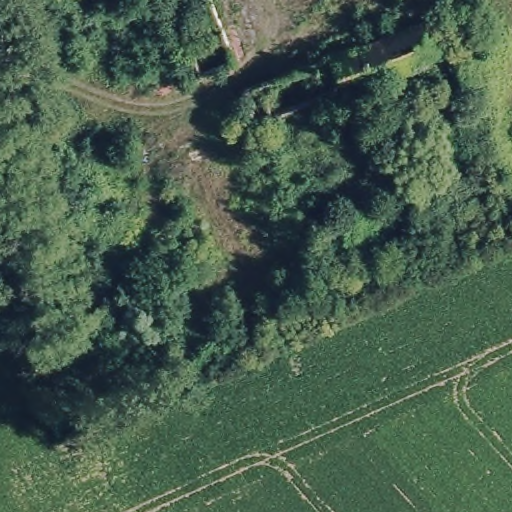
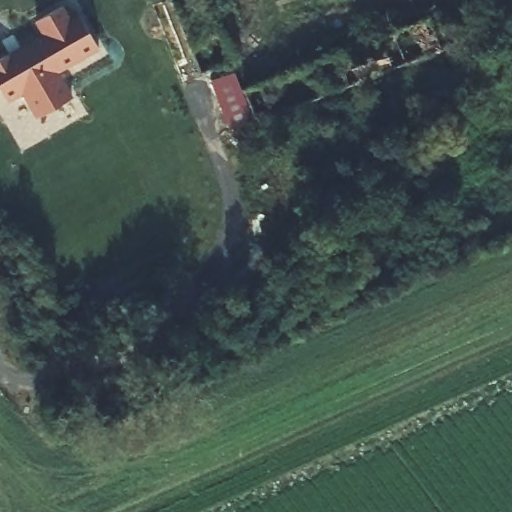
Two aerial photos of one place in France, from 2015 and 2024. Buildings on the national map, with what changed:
unchanged [(182,81),(168,44),(153,4),(164,0),(212,0),(235,62),(182,81)]
new [(46,37),(37,22),(63,7),(70,20),(80,13),(99,50),(56,71),(70,96),(37,112),(23,91),(8,100),(0,87),(0,65),(46,37)]
unchanged [(441,49),(384,72),(293,106),(255,121),(243,90),(316,61),(426,19),(428,17),(435,36),(441,49)]
unchanged [(270,149),(264,152),(262,152),(255,156),(247,160),(237,135),(234,129),(250,123),(255,137),(264,133),(270,149)]

